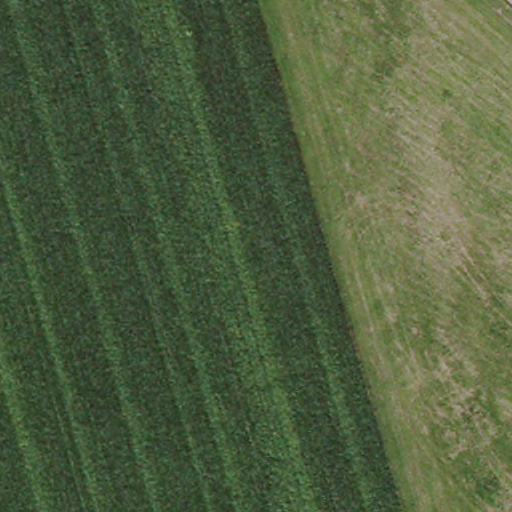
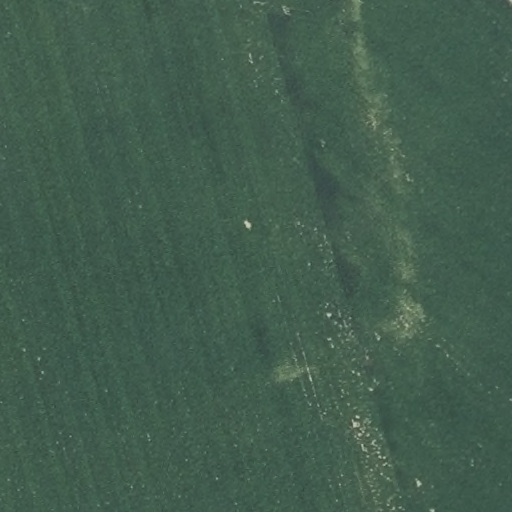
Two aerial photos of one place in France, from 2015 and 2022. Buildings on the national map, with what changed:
[]

